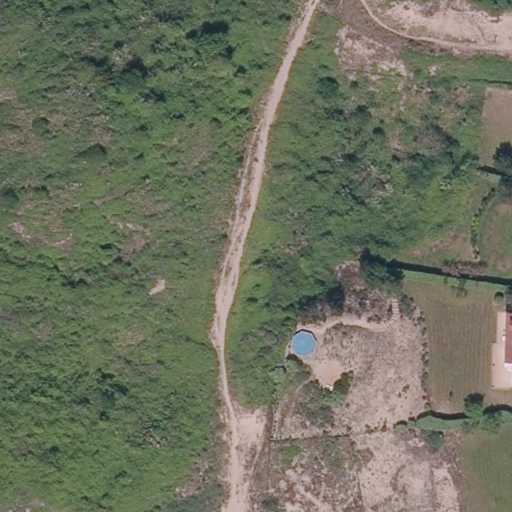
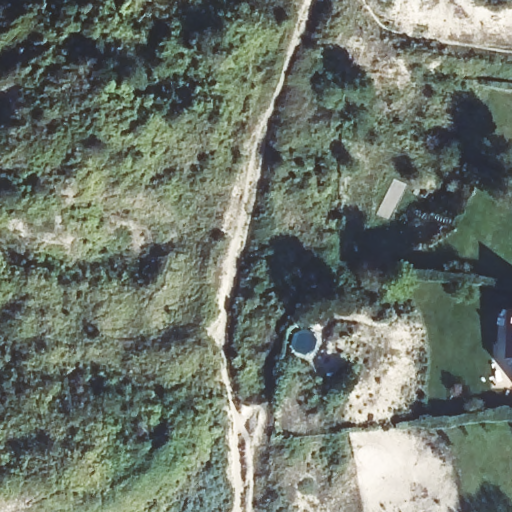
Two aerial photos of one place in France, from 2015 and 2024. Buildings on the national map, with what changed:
unchanged [(505,356),(507,306),(512,307),(512,356),(505,356)]

